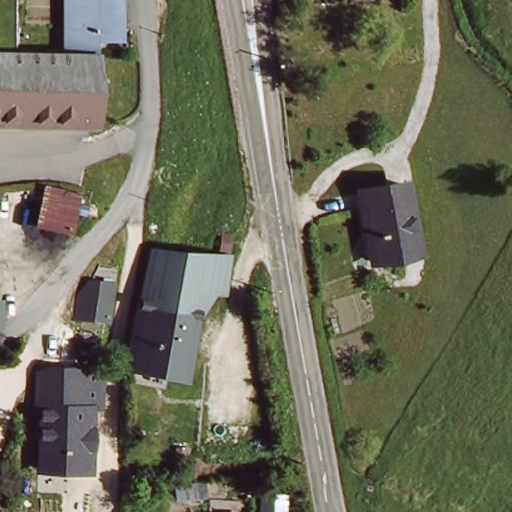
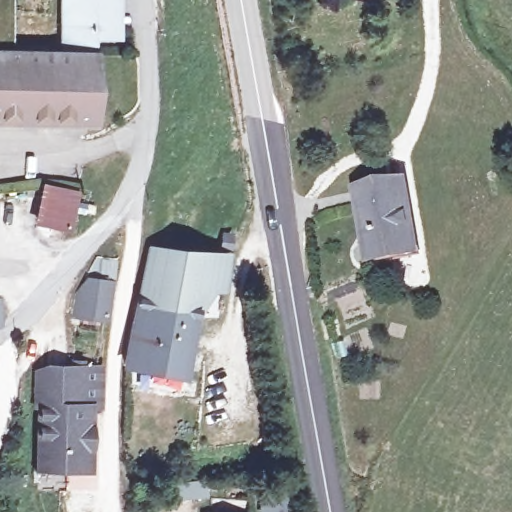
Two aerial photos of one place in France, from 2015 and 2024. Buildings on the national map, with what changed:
unchanged [(74,48),(73,34),(75,0),(129,0),(128,39),(113,40),(111,49),(105,49),(74,48)]
unchanged [(0,124),(0,50),(96,51),(96,123),(0,124)]
unchanged [(73,215),(67,230),(34,218),(38,207),(47,185),(80,196),(75,209),(73,215)]
unchanged [(374,262),(360,195),(407,187),(420,255),(374,262)]
unchanged [(144,246),(219,258),(214,288),(192,285),(173,371),(122,362),(144,246)]
unchanged [(88,278),(109,280),(107,321),(87,320),(88,278)]
unchanged [(97,408),(94,473),(34,473),(36,406),(31,406),(33,364),(86,367),(106,368),(105,402),(105,408),(97,408)]

